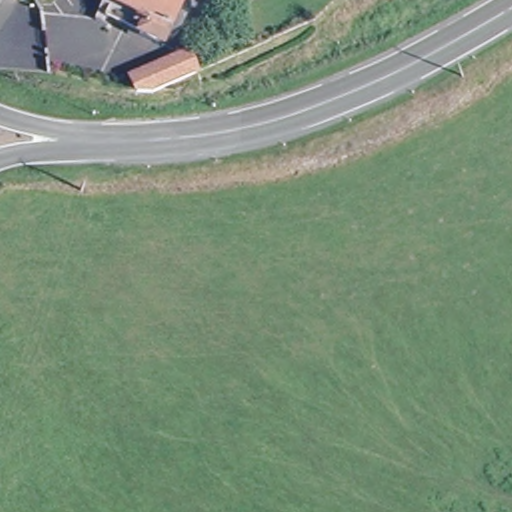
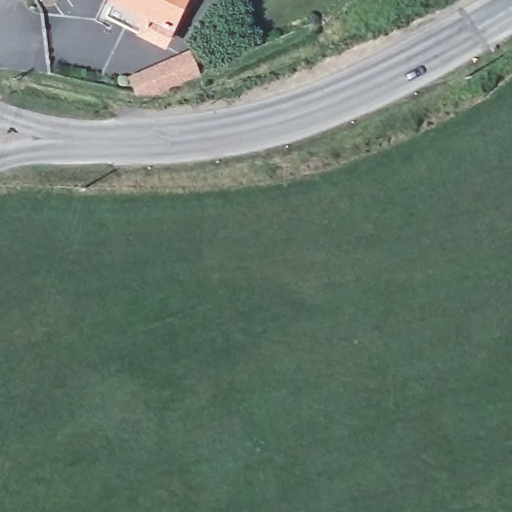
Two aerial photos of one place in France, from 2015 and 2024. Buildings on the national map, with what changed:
unchanged [(101,15),(107,1),(107,0),(180,0),(157,43),(101,15)]
unchanged [(134,92),(127,76),(137,72),(142,70),(145,69),(180,54),(189,75),(149,91),(138,92),(134,92)]

